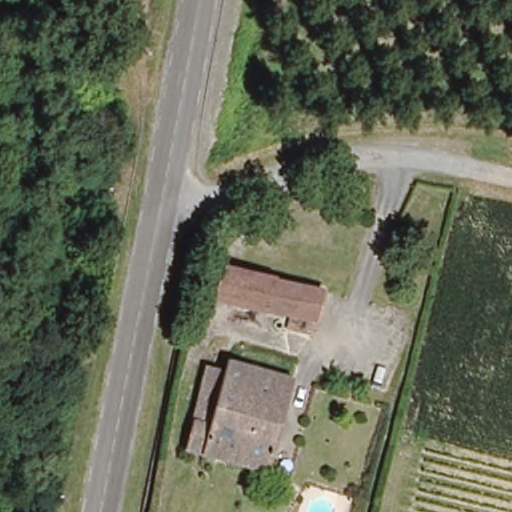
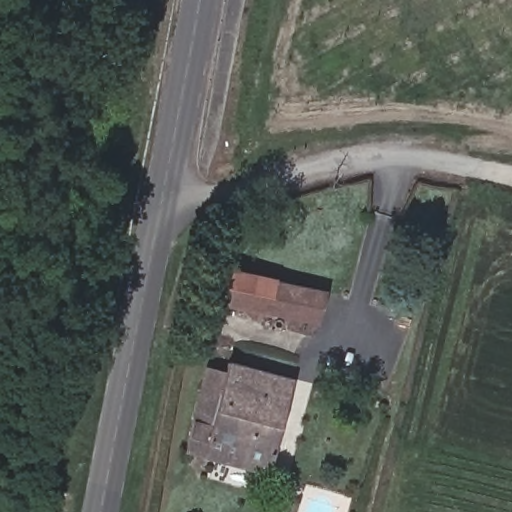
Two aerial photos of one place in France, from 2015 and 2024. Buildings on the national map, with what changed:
unchanged [(220,265),(319,288),(310,331),(284,325),(287,314),(214,296),(220,265)]
unchanged [(295,380),(268,471),(187,450),(189,444),(198,404),(208,365),(228,371),(231,362),(295,380)]

